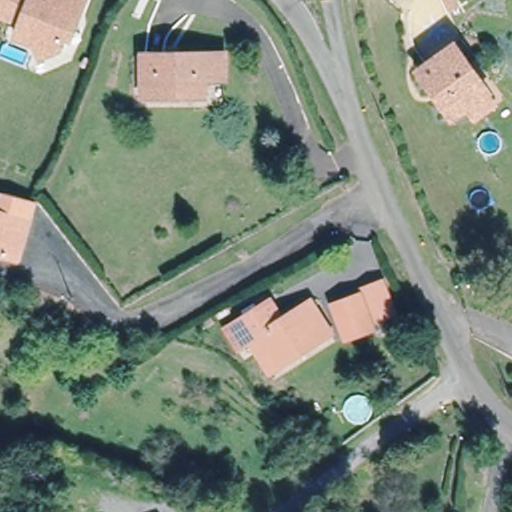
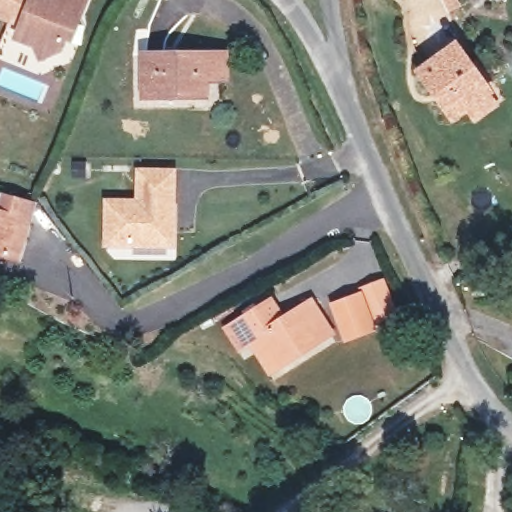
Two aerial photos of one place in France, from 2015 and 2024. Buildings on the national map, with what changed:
unchanged [(0,0),(83,0),(80,9),(72,12),(59,46),(40,55),(34,41),(17,35),(22,20),(11,16),(0,12),(0,0)]
unchanged [(475,122),(466,110),(453,120),(420,74),(453,49),(487,95),(496,107),(475,122)]
unchanged [(210,54),(223,54),(222,80),(205,80),(205,96),(142,96),(142,54),(210,54)]
new [(104,201),(136,202),(137,171),(169,172),(167,244),(103,242),(104,201)]
unchanged [(17,261),(0,256),(0,200),(2,192),(32,201),(17,261)]
unchanged [(390,285),(397,315),(378,320),(371,289),(390,285)]
unchanged [(369,292),(380,333),(357,339),(347,297),(369,292)]
unchanged [(247,337),(235,344),(225,327),(237,320),(270,302),(280,320),(312,301),(330,332),(285,357),(284,356),(277,360),(264,367),(247,337)]

